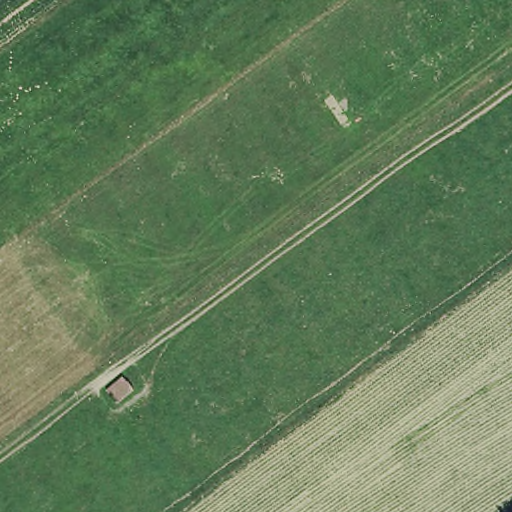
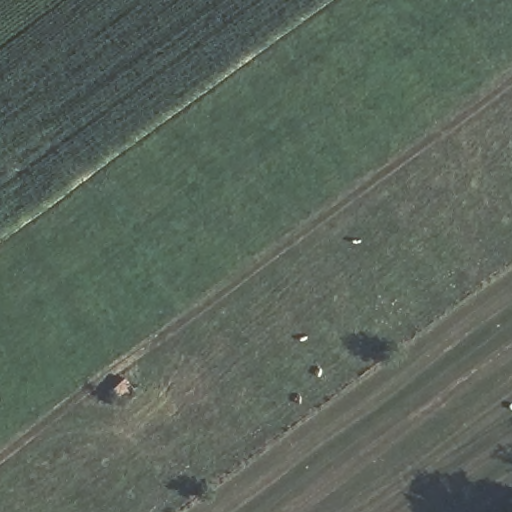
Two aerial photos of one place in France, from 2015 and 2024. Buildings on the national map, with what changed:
unchanged [(126,370),(140,387),(117,402),(106,386),(126,370)]

